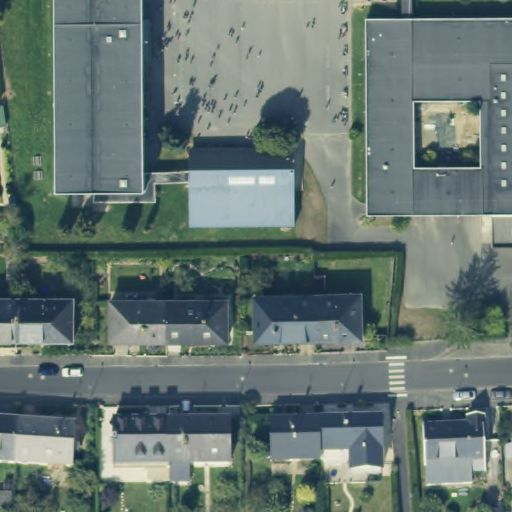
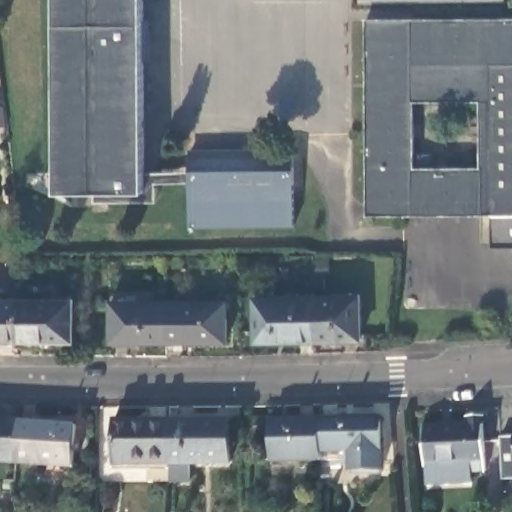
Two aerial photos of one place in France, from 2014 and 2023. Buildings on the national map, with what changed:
unchanged [(142,193),(82,194),(55,194),(54,0),(142,0),(142,174),(142,193)]
unchanged [(512,19),(512,247),(489,247),(489,215),(365,215),(364,21),(512,19)]
unchanged [(0,108),(4,108),(7,128),(0,129),(0,108)]
unchanged [(294,227),(190,229),(190,185),(190,174),(190,159),(220,159),(223,155),(260,154),(265,159),(293,159),(294,227)]
unchanged [(154,185),(154,205),(93,205),(93,202),(82,202),(82,194),(142,193),(142,174),(190,174),(190,185),(154,185)]
unchanged [(355,296),(356,340),(311,341),(311,297),(355,296)]
unchanged [(252,342),(251,300),(311,297),(311,341),(252,342)]
unchanged [(0,301),(12,301),(12,342),(0,342),(0,301)]
unchanged [(68,302),(67,344),(12,342),(12,301),(68,302)]
unchanged [(221,303),(221,343),(162,344),(162,304),(221,303)]
unchanged [(107,345),(107,305),(162,304),(162,344),(107,345)]
unchanged [(483,470),(471,470),(472,482),(427,485),(425,465),(422,465),(421,425),(467,423),(467,415),(481,415),(483,470)]
unchanged [(230,417),(230,458),(170,458),(170,418),(230,417)]
unchanged [(272,459),(271,418),(321,417),(322,458),(272,459)]
unchanged [(380,417),(381,469),(347,470),(347,458),(322,458),(321,417),(380,417)]
unchanged [(170,476),(147,477),(147,459),(114,460),(114,418),(170,418),(170,458),(170,476)]
unchanged [(0,421),(14,422),(12,462),(0,462),(0,421)]
unchanged [(71,425),(68,466),(12,462),(14,422),(71,425)]

